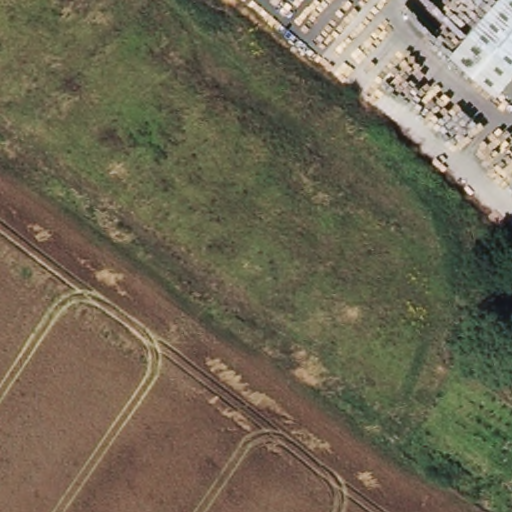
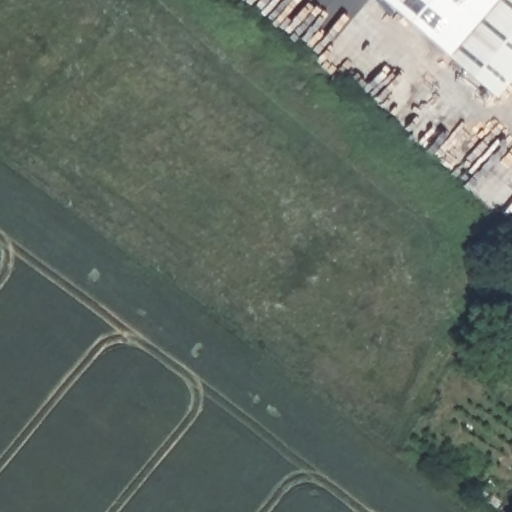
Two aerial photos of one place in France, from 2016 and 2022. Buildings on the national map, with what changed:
new [(384,0),(498,0),(451,54),(384,0)]
unchanged [(451,54),(498,0),(512,0),(512,78),(497,95),(451,54)]

